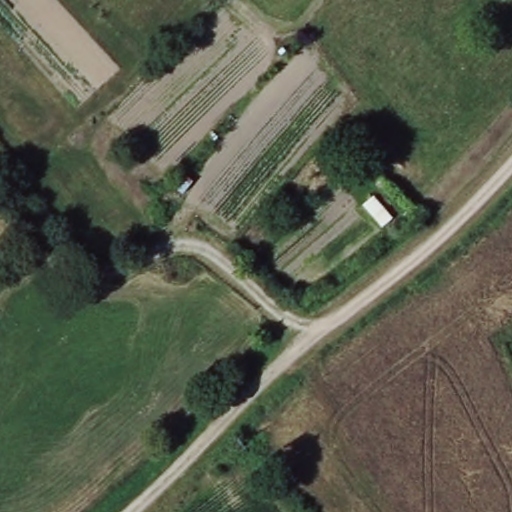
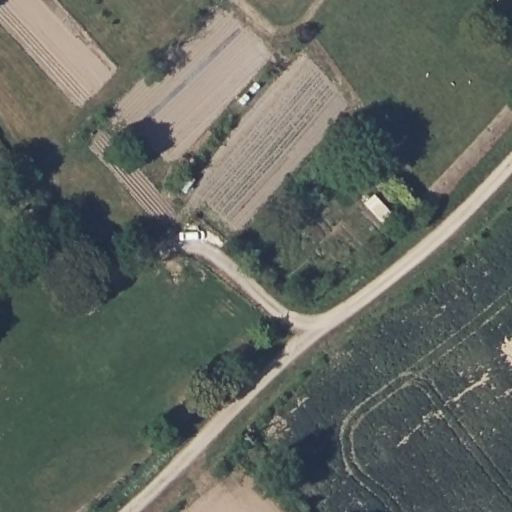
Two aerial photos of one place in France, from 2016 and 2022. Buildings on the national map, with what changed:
unchanged [(184,192),(176,185),(186,172),(194,180),(184,192)]

